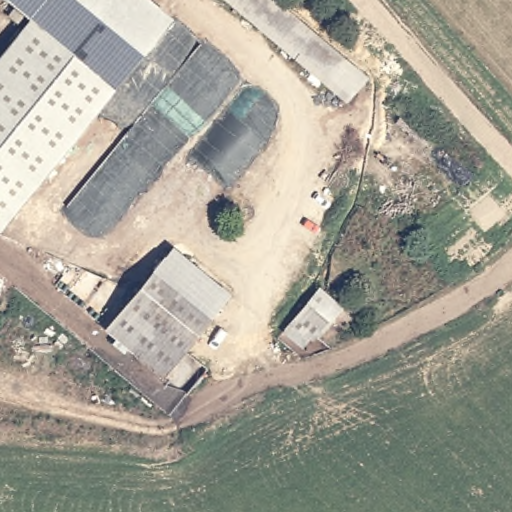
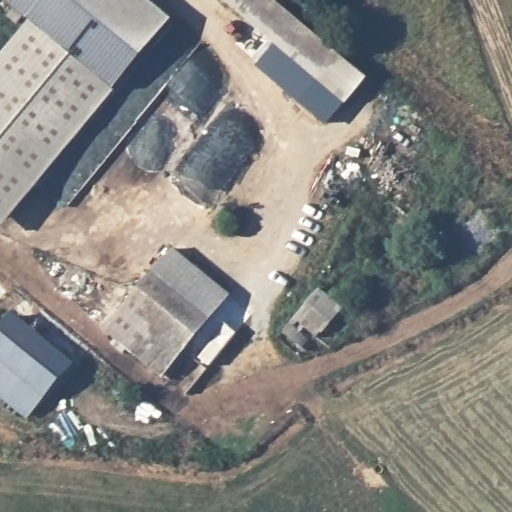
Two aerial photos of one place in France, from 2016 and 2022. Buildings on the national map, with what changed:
unchanged [(51,36),(8,0),(148,0),(168,16),(172,20),(164,30),(0,224),(0,97),(51,36)]
unchanged [(225,0),(270,0),(334,54),(340,59),(320,80),(312,74),(225,0)]
unchanged [(174,253),(229,298),(164,374),(107,328),(174,253)]
unchanged [(307,306),(331,325),(307,351),(284,330),(307,306)]
new [(12,313),(74,362),(28,418),(0,397),(0,328),(12,313)]

